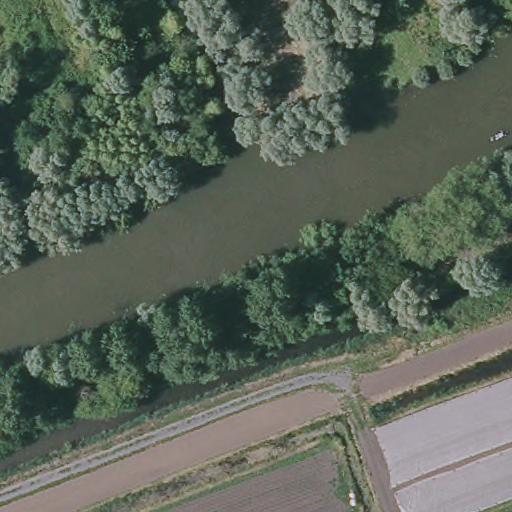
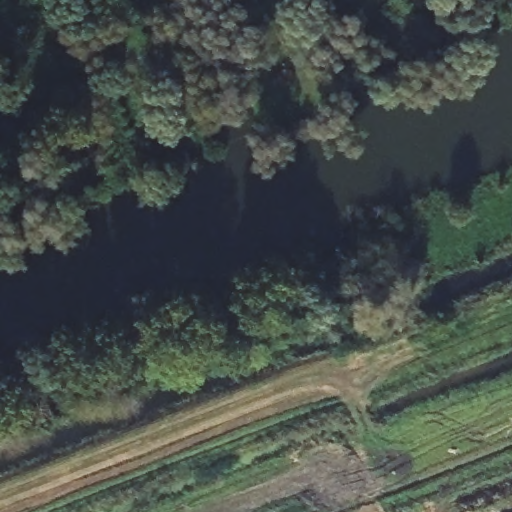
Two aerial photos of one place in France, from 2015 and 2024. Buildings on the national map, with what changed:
unchanged [(442,261),(435,236),(452,231),(462,255),(442,261)]

